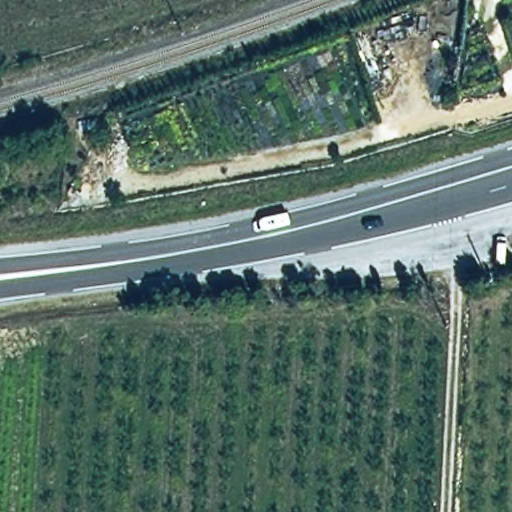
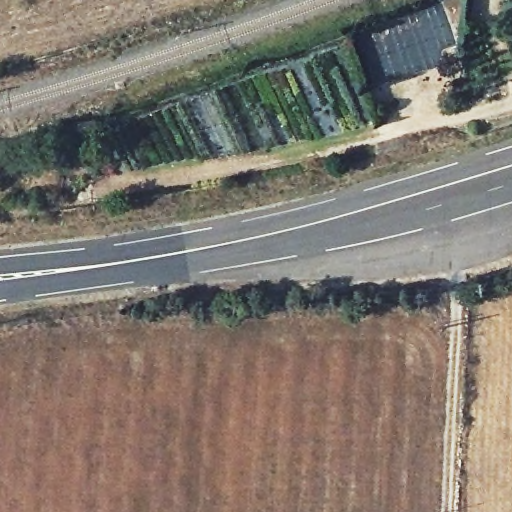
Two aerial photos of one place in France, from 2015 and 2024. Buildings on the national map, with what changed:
[]

